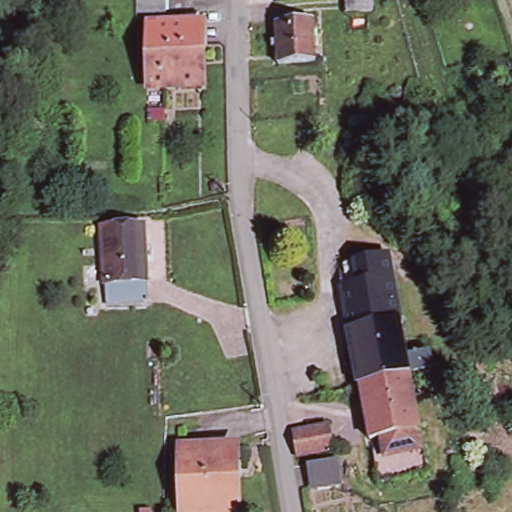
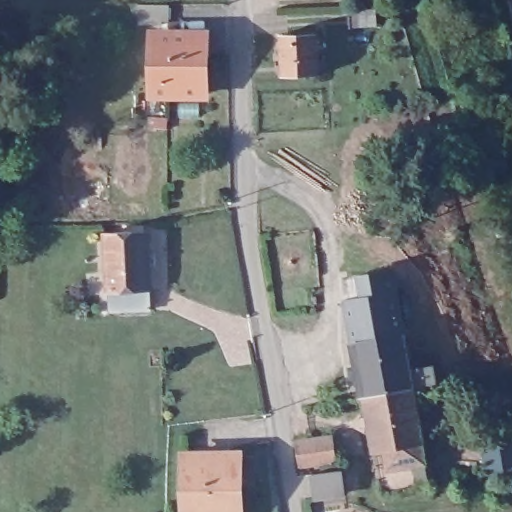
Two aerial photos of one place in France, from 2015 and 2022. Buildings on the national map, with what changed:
unchanged [(352,14),(351,0),(378,0),(379,13),(352,14)]
unchanged [(176,23),(176,40),(170,40),(170,44),(146,45),(145,24),(176,23)]
unchanged [(315,33),(316,75),(280,75),(279,33),(315,33)]
unchanged [(202,40),(203,58),(208,58),(211,102),(174,103),(177,41),(202,40)]
unchanged [(164,116),(162,78),(161,55),(175,54),(174,79),(172,116),(164,116)]
unchanged [(106,316),(105,296),(102,238),(145,237),(147,294),(149,314),(106,316)]
unchanged [(351,276),(396,270),(399,292),(353,298),(351,276)]
unchanged [(347,298),(353,298),(399,292),(404,331),(352,338),(347,298)]
unchanged [(367,458),(360,393),(352,338),(404,331),(410,367),(432,365),(435,383),(412,386),(422,451),(367,458)]
unchanged [(332,438),(333,464),(299,468),(295,441),(332,438)]
unchanged [(187,449),(242,447),(244,471),(237,471),(237,512),(187,512),(187,449)]
unchanged [(422,451),(427,487),(372,495),(367,458),(422,451)]
unchanged [(339,473),(341,496),(310,499),(308,475),(339,473)]

